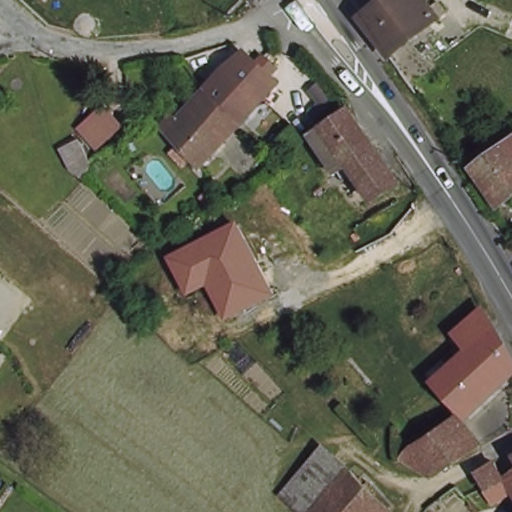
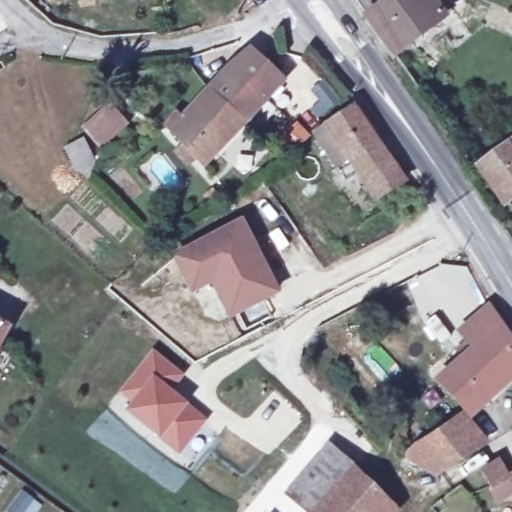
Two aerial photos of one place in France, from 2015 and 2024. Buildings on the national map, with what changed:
unchanged [(366,23),(396,0),(440,0),(452,15),(393,60),(366,23)]
unchanged [(230,75),(250,59),(251,60),(261,69),(274,80),(280,86),(266,105),(264,108),(242,87),(229,76),(230,75)]
unchanged [(242,87),(264,108),(251,121),(246,129),(244,130),(209,97),(210,96),(229,76),(242,87)]
unchanged [(244,130),(241,134),(206,171),(168,133),(176,120),(183,125),(206,101),(209,97),(244,130)]
unchanged [(321,145),(359,117),(411,188),(384,205),(359,170),(345,178),(321,145)]
unchanged [(281,152),(298,138),(310,128),(319,136),(310,145),(309,146),(311,150),(293,165),(281,152)]
unchanged [(97,160),(89,176),(76,170),(63,147),(88,137),(97,160)]
unchanged [(512,138),(512,195),(502,203),(475,168),(512,138)]
unchanged [(276,295),(231,321),(212,287),(191,298),(171,256),(241,221),(276,295)]
unchanged [(489,311),(498,327),(509,346),(512,353),(512,380),(467,412),(436,382),(474,348),(463,337),(489,311)]
unchanged [(7,326),(0,336),(0,322),(7,326)]
unchanged [(6,346),(0,357),(0,342),(6,346)]
new [(168,395),(206,421),(183,452),(133,415),(139,406),(125,396),(153,359),(180,378),(168,395)]
unchanged [(429,467),(423,471),(409,471),(404,460),(413,447),(429,435),(462,415),(487,442),(468,455),(462,459),(437,476),(429,467)]
unchanged [(326,445),(345,463),(301,509),(283,490),(326,445)]
unchanged [(484,491),(472,476),(474,474),(496,462),(506,478),(512,475),(512,492),(494,502),(484,491)]
unchanged [(345,463),(384,500),(373,512),(305,512),(301,509),(345,463)]

